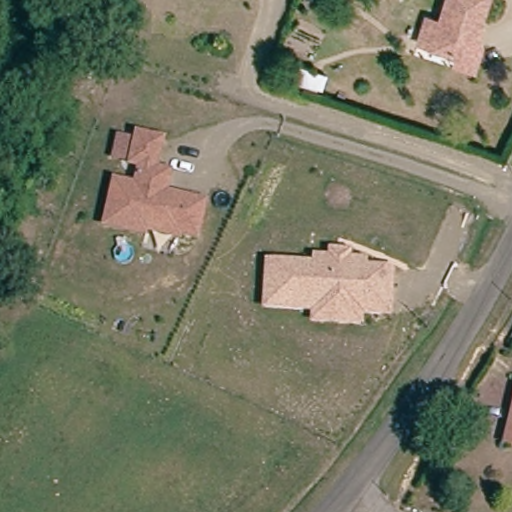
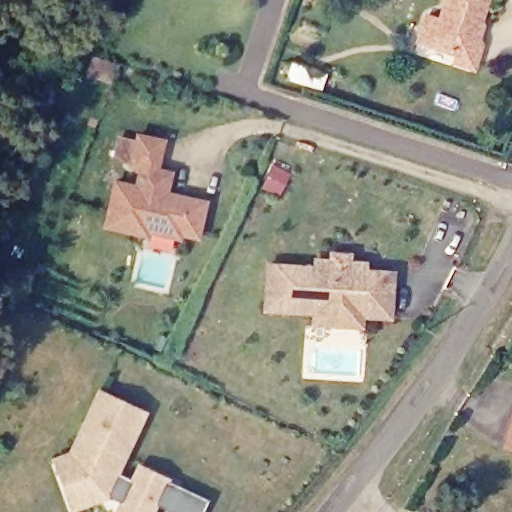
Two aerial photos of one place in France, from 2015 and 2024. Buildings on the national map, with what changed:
unchanged [(479,72),(461,66),(463,59),(424,47),(432,21),(445,26),(453,0),(493,0),(478,50),(485,52),(479,72)]
unchanged [(112,180),(133,185),(137,171),(128,169),(135,133),(165,141),(158,168),(172,172),(169,191),(207,201),(198,238),(181,235),(179,244),(100,229),(112,180)]
unchanged [(267,266),(313,268),(314,261),(330,262),(331,254),(348,255),(348,264),(363,265),(362,272),(391,275),(387,315),(359,314),(358,327),(311,325),(312,312),(263,311),(267,266)]
new [(109,500),(83,508),(73,512),(57,464),(73,458),(75,458),(83,441),(80,439),(87,424),(91,425),(104,397),(147,417),(119,476),(136,483),(142,471),(183,490),(212,503),(208,512),(166,512),(151,505),(148,512),(125,512),(127,508),(109,500)]
unchanged [(512,449),(506,447),(512,424),(512,449)]

